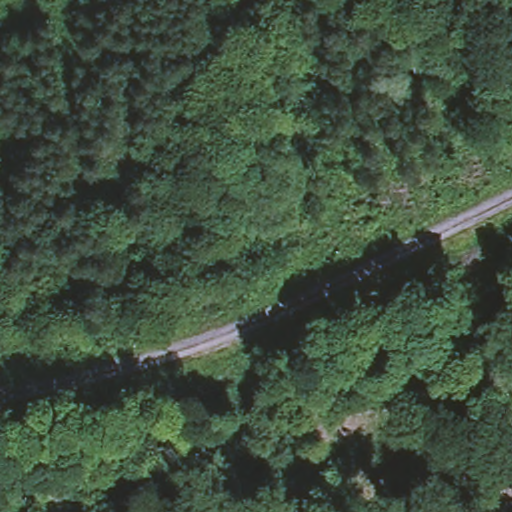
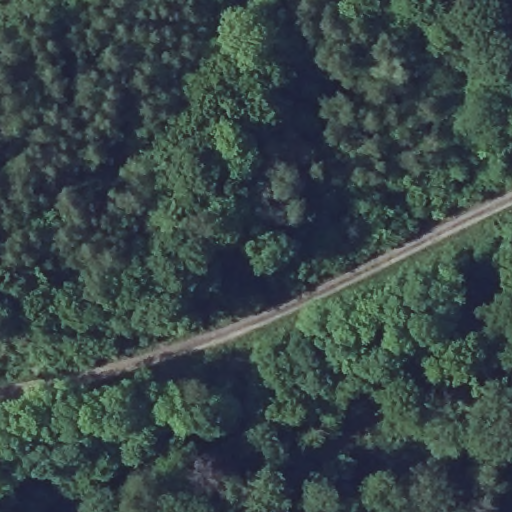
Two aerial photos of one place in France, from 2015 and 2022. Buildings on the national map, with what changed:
unchanged [(443,83),(455,109),(416,125),(408,105),(443,83)]

